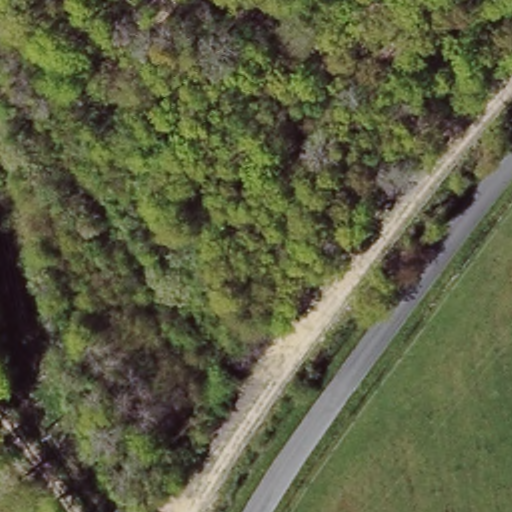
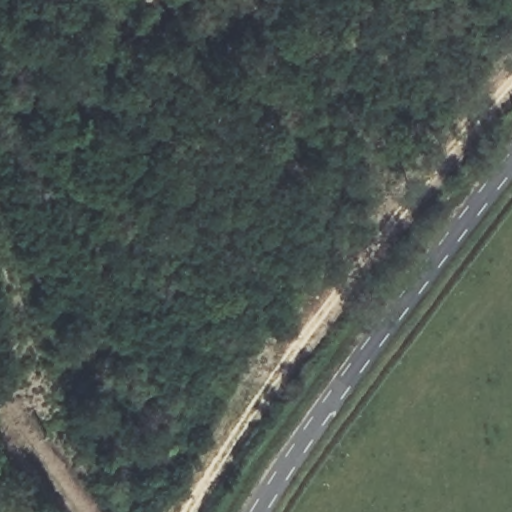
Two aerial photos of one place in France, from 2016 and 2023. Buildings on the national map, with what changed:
[]

